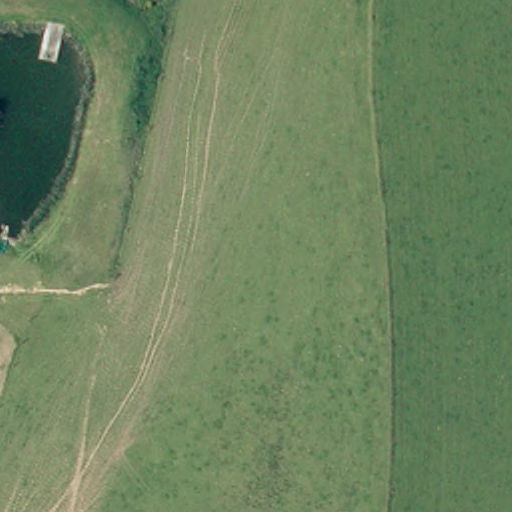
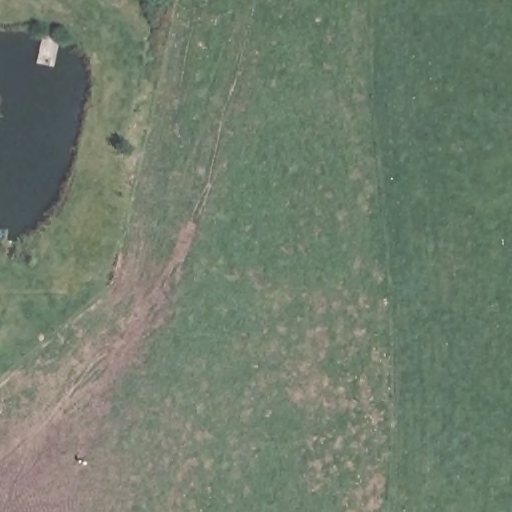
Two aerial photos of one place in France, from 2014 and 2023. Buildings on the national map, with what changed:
[]

